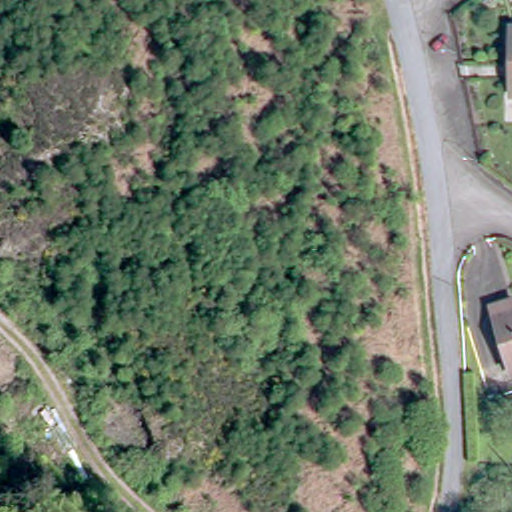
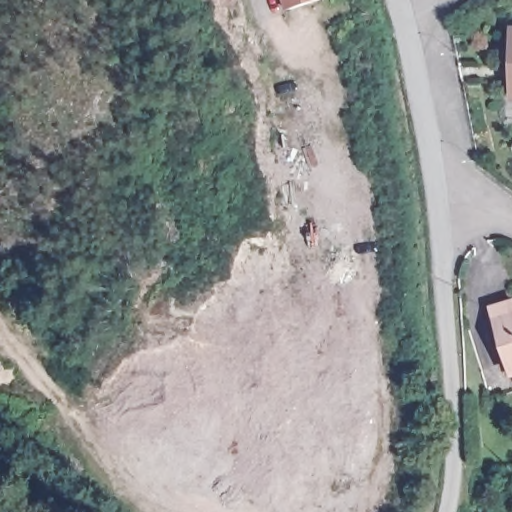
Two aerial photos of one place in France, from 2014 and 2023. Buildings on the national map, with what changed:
new [(284,9),(282,0),(313,0),(284,9)]
unchanged [(492,312),(512,307),(512,371),(508,372),(492,312)]

